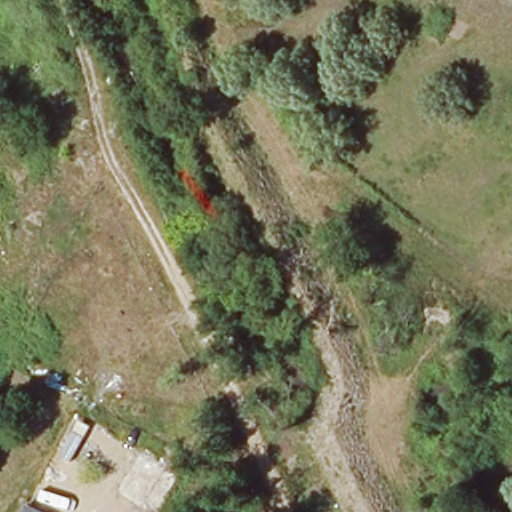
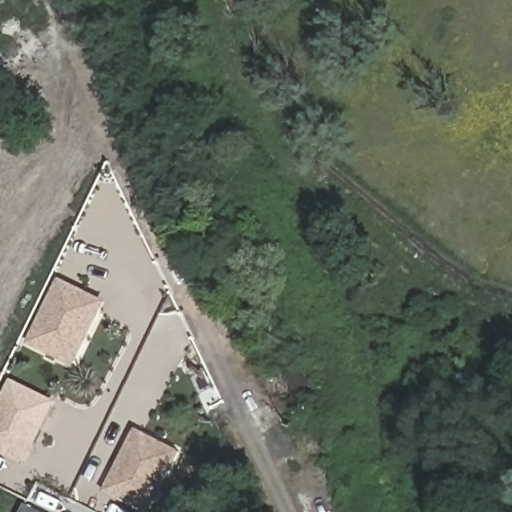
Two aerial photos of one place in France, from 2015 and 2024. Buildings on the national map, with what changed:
new [(27,343),(59,278),(106,302),(74,365),(27,343)]
new [(25,465),(0,452),(0,400),(10,379),(56,400),(25,465)]
new [(146,512),(105,490),(135,428),(182,451),(151,512),(146,512)]
unchanged [(42,512),(21,512),(25,503),(42,512)]

